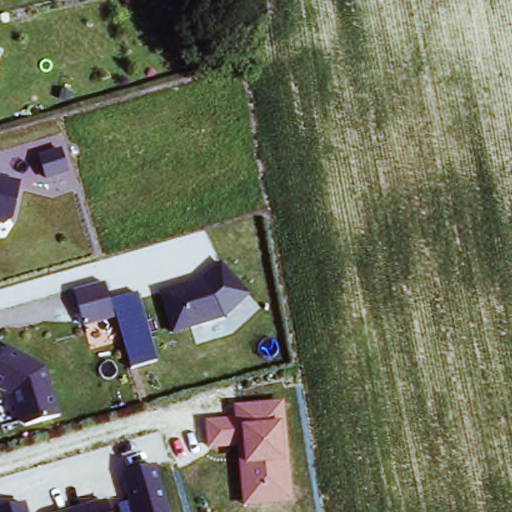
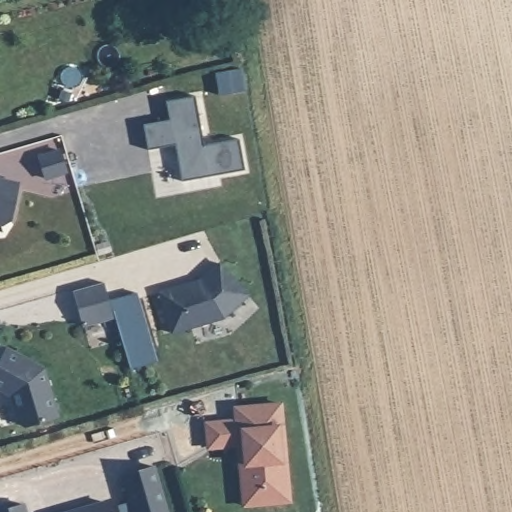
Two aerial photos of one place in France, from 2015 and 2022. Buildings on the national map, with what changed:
new [(167,121),(164,102),(194,96),(203,147),(238,140),(245,173),(181,185),(173,144),(163,146),(164,149),(146,152),(141,126),(167,121)]
unchanged [(5,220),(0,219),(0,177),(17,180),(10,216),(5,220)]
unchanged [(172,334),(161,293),(202,281),(220,265),(249,295),(223,319),(172,334)]
unchanged [(105,283),(115,315),(82,325),(72,292),(105,283)]
unchanged [(115,315),(110,298),(139,290),(158,358),(131,368),(115,315)]
unchanged [(19,424),(12,400),(15,396),(7,392),(6,394),(0,391),(0,363),(7,350),(45,370),(57,408),(52,415),(19,424)]
unchanged [(282,402),(290,505),(242,508),(237,448),(206,451),(204,420),(235,418),(235,405),(282,402)]
unchanged [(169,512),(122,512),(120,501),(130,498),(125,472),(155,463),(169,512)]
unchanged [(106,500),(109,512),(57,512),(106,500)]
unchanged [(0,509),(28,502),(31,512),(0,512),(0,509)]

